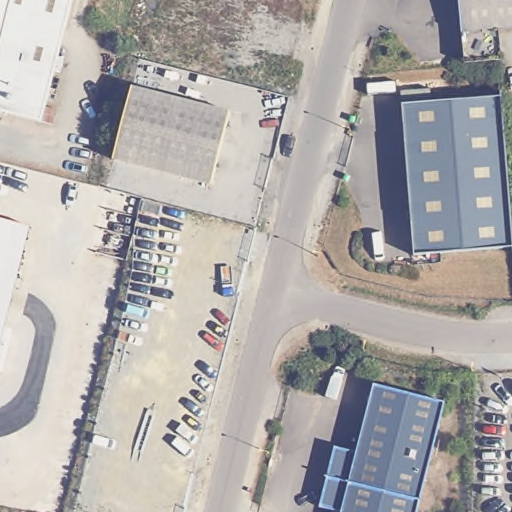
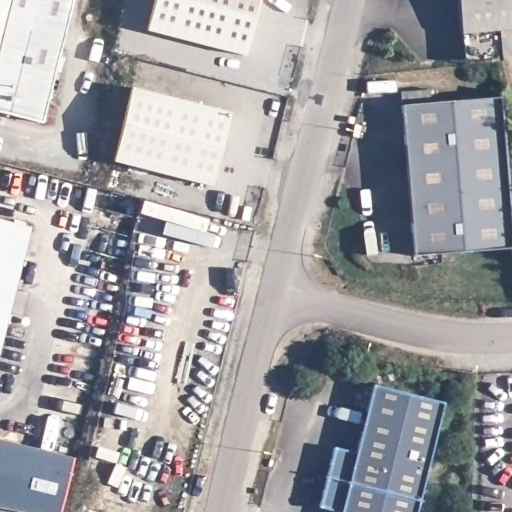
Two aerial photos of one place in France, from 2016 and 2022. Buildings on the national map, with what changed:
unchanged [(41,122),(0,112),(0,0),(73,0),(41,122)]
new [(156,0),(260,0),(247,54),(149,30),(156,0)]
unchanged [(464,35),(460,0),(512,0),(512,31),(464,35)]
unchanged [(232,113),(212,186),(115,162),(132,87),(232,113)]
unchanged [(512,233),(512,249),(413,256),(401,105),(503,97),(512,233)]
unchanged [(0,220),(17,224),(0,291),(0,220)]
unchanged [(0,355),(0,291),(17,224),(31,228),(0,355)]
unchanged [(321,505),(328,476),(327,475),(327,474),(329,474),(337,445),(358,450),(376,382),(447,400),(419,512),(343,512),(343,511),(321,505)]
new [(14,512),(0,509),(0,438),(75,456),(60,512),(14,512)]

